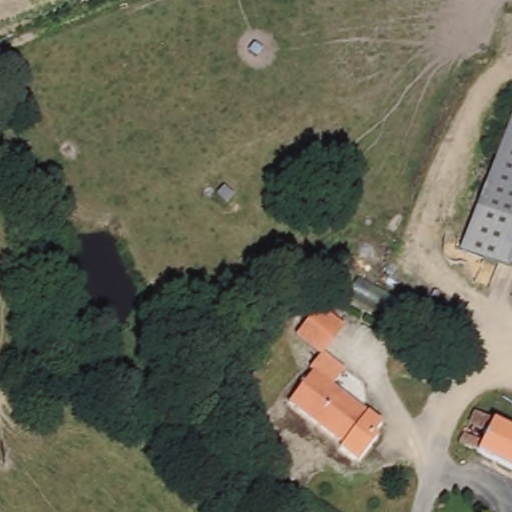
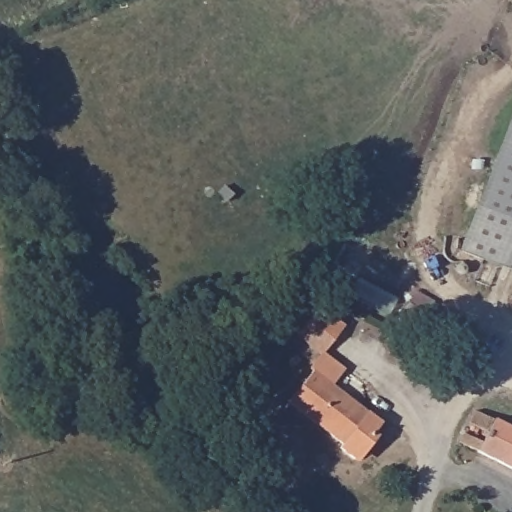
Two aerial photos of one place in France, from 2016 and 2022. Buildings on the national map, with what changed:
unchanged [(512,123),(512,271),(463,252),(512,123)]
unchanged [(340,327),(319,355),(295,336),(316,308),(340,327)]
unchanged [(310,372),(378,425),(370,436),(375,439),(355,462),(336,449),(338,444),(286,403),(310,372)]
unchanged [(480,443),(485,434),(466,426),(472,412),(512,430),(512,472),(457,446),(461,435),(480,443)]

